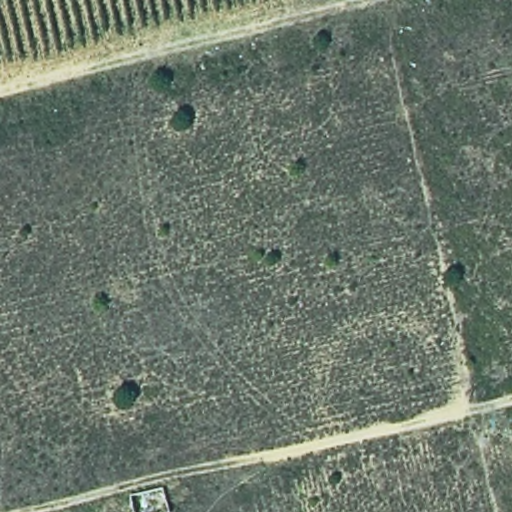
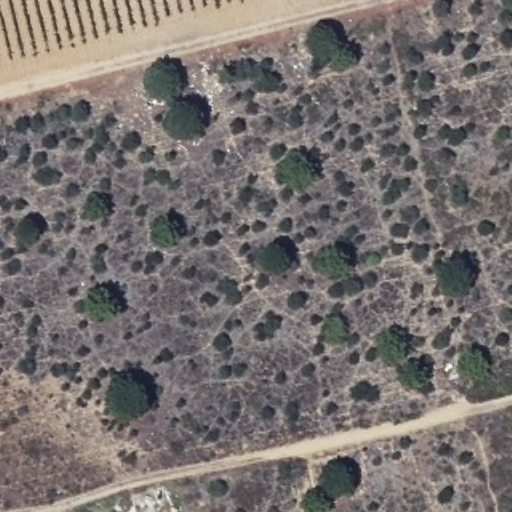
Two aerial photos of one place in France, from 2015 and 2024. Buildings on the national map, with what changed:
unchanged [(163,493),(165,498),(169,512),(133,512),(130,503),(163,493)]

